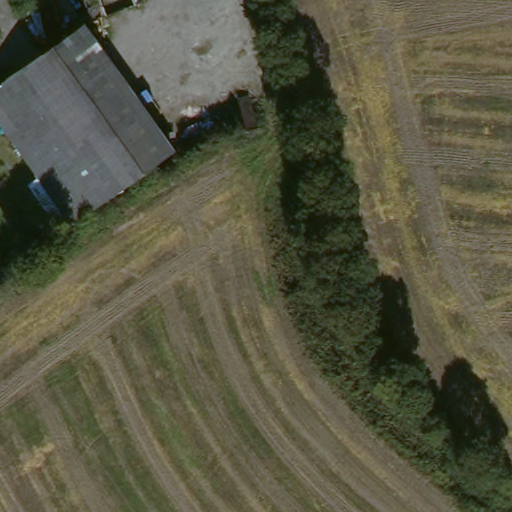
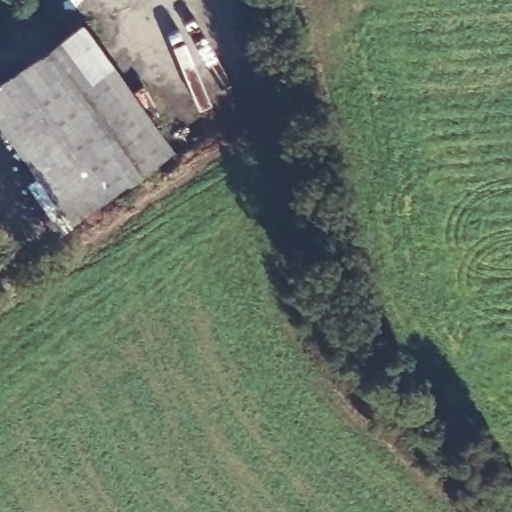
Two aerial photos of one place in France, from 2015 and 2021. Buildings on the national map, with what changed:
unchanged [(75,225),(0,114),(0,88),(91,21),(178,148),(75,225)]

